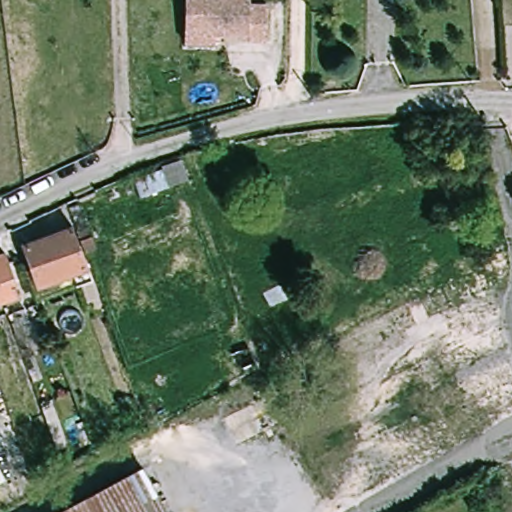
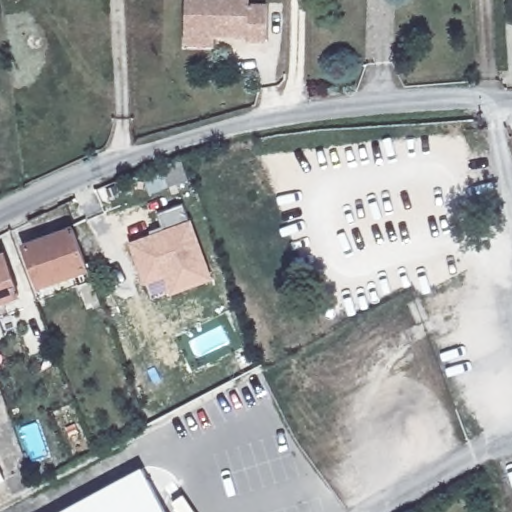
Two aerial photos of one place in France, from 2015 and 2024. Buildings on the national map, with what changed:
unchanged [(190,36),(190,0),(254,0),(254,6),(272,6),(271,42),(252,42),(252,37),(220,37),(220,45),(190,45),(190,36)]
unchanged [(143,197),(135,179),(184,159),(191,179),(143,197)]
new [(163,282),(146,288),(128,242),(165,229),(160,213),(184,204),(190,220),(193,219),(215,280),(171,295),(163,282)]
unchanged [(98,307),(96,302),(92,304),(86,287),(80,288),(75,274),(42,287),(27,247),(77,228),(92,268),(105,305),(98,307)]
unchanged [(19,296),(0,302),(0,254),(4,253),(19,296)]
unchanged [(142,469),(165,512),(62,512),(142,469)]
unchanged [(4,480),(0,482),(0,472),(4,480)]

